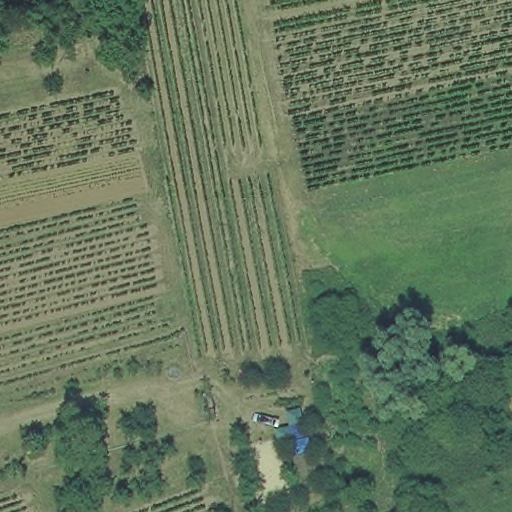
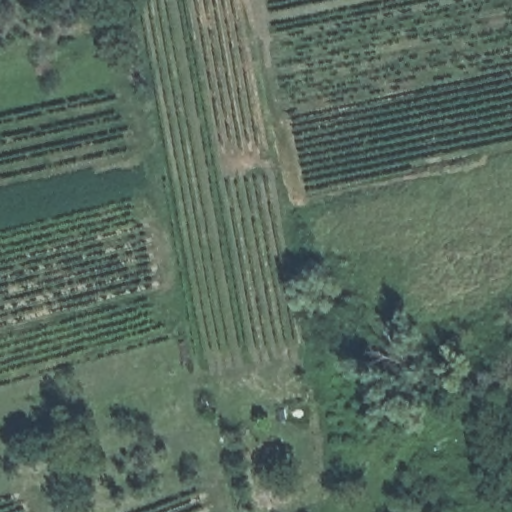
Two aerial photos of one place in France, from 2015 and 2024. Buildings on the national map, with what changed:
unchanged [(509,472),(512,470),(512,480),(509,472)]

